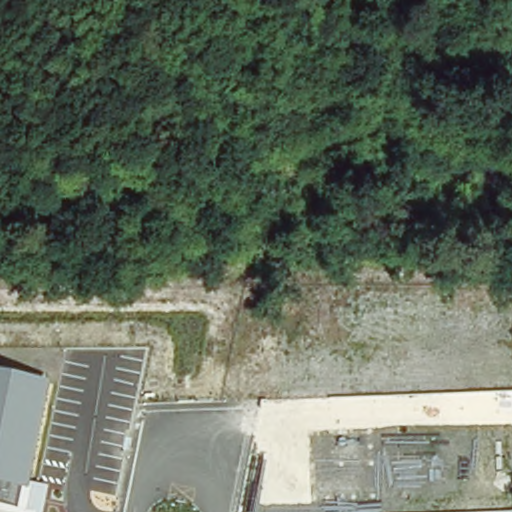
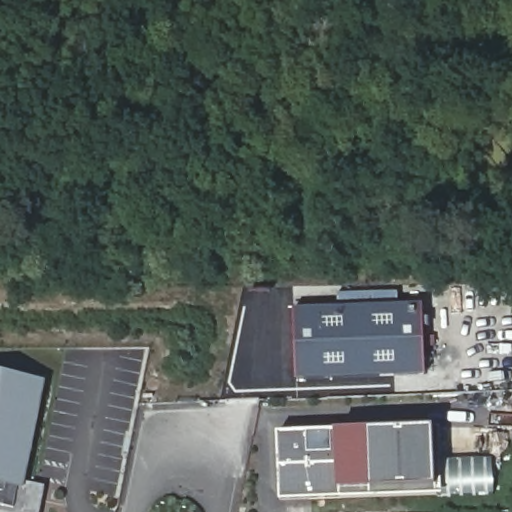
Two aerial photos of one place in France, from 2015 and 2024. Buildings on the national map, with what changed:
new [(425,307),(426,377),(297,379),(295,309),(425,307)]
unchanged [(0,512),(0,372),(48,381),(27,481),(46,485),(41,512),(0,512)]
new [(280,434),(337,431),(435,429),(441,429),(445,493),(282,499),(280,434)]

